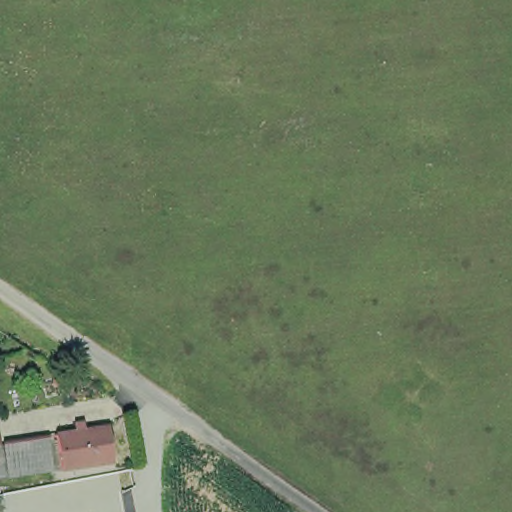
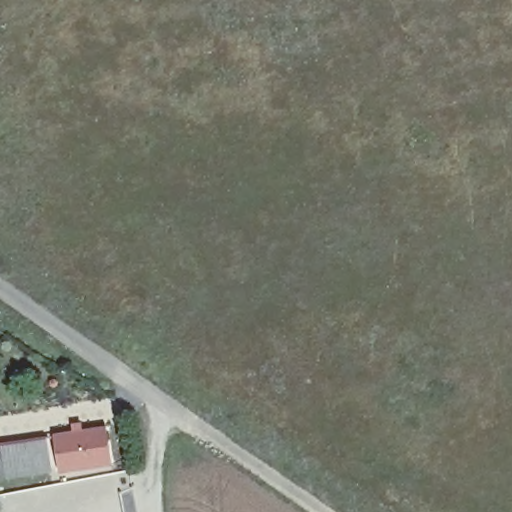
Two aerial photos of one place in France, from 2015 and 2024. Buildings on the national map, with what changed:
unchanged [(115,461),(63,467),(61,449),(70,449),(67,430),(81,428),(80,420),(88,420),(89,427),(110,424),(115,461)]
unchanged [(53,469),(8,474),(5,444),(50,439),(53,469)]

